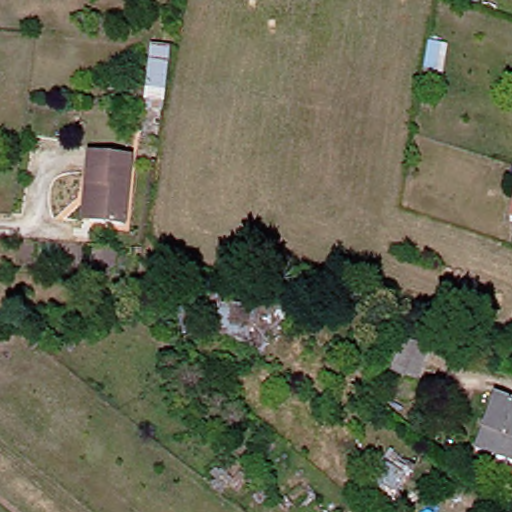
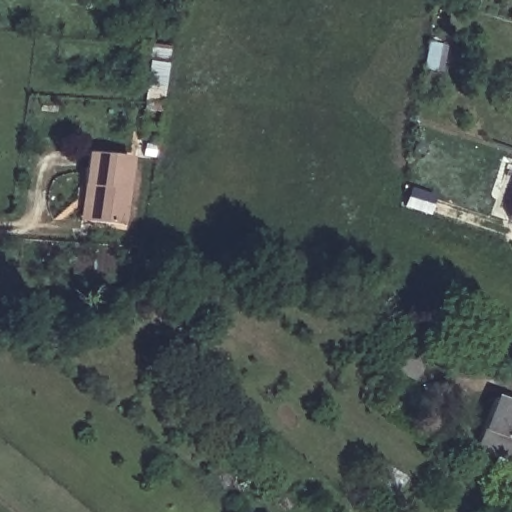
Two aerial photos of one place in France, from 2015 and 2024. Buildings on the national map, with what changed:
unchanged [(157,53),(176,56),(171,86),(168,103),(159,102),(150,99),(152,84),(157,53)]
unchanged [(140,158),(136,225),(102,224),(105,188),(95,187),(97,155),(140,158)]
unchanged [(502,402),(512,406),(512,464),(505,461),(482,452),(502,402)]
unchanged [(401,455),(419,465),(412,477),(433,495),(421,512),(414,512),(377,482),(401,455)]

